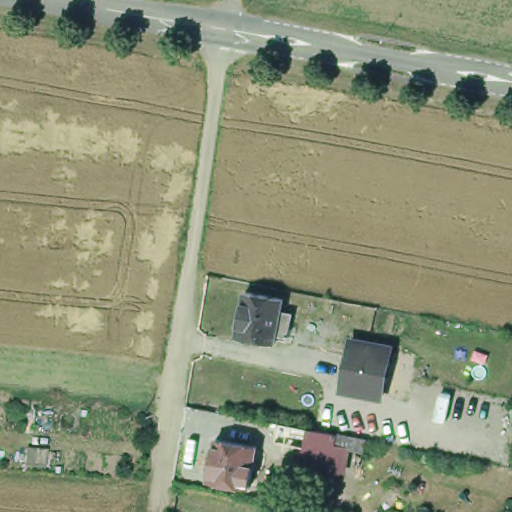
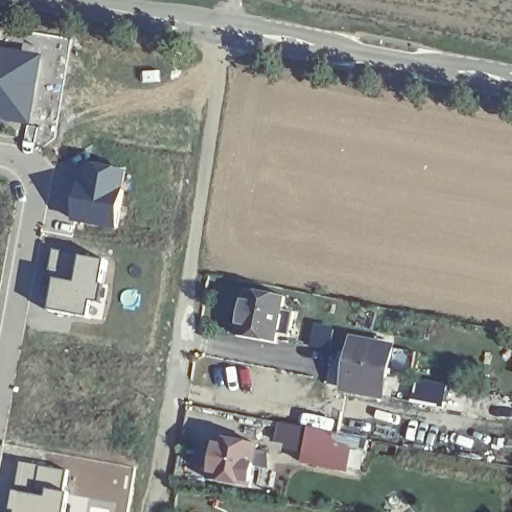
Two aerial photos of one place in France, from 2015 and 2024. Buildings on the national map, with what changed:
new [(32,126),(7,123),(7,126),(0,125),(0,48),(45,56),(32,126)]
new [(82,161),(127,169),(115,232),(72,222),(82,161)]
new [(57,278),(76,282),(80,256),(107,261),(102,304),(95,303),(92,318),(52,311),(57,278)]
unchanged [(286,334),(274,332),(272,341),(235,333),(243,290),(280,297),(277,310),(290,312),(286,334)]
unchanged [(346,391),(355,340),(395,347),(386,398),(346,391)]
demolished [(297,426),(293,441),(267,435),(269,421),(297,426)]
demolished [(312,428),(330,431),(322,467),(309,465),(310,458),(296,455),(302,426),(312,428)]
new [(360,473),(322,467),(309,465),(310,458),(296,455),(302,426),(312,428),(330,431),(366,437),(360,473)]
unchanged [(207,478),(214,436),(255,443),(254,450),(265,451),(264,459),(252,457),(247,485),(207,478)]
new [(69,470),(66,492),(70,493),(66,512),(13,512),(20,462),(69,470)]

